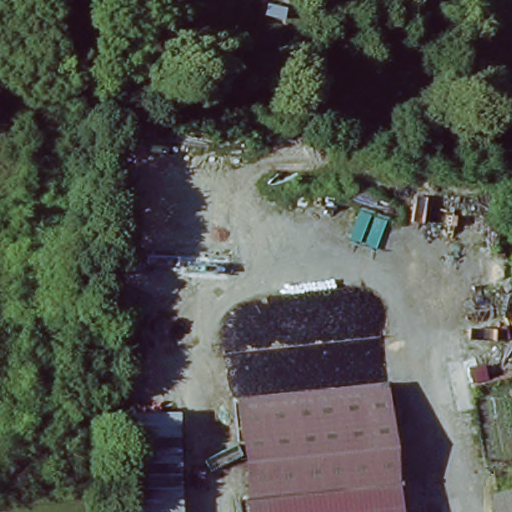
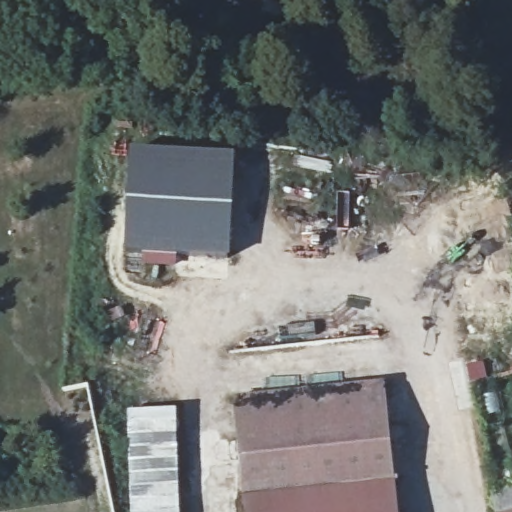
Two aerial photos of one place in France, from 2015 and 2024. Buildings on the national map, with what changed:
new [(236,157),(231,260),(178,256),(176,268),(146,266),(148,255),(128,253),(133,151),(236,157)]
unchanged [(246,406),(394,402),(397,512),(249,512),(246,406)]
unchanged [(185,512),(134,512),(131,412),(182,412),(185,512)]
unchanged [(495,492),(512,488),(512,512),(499,512),(495,492)]

